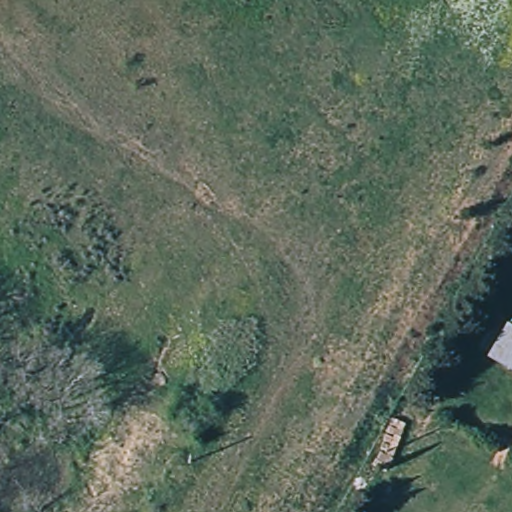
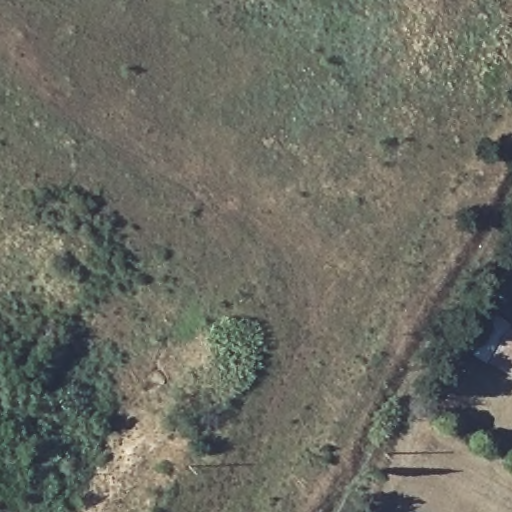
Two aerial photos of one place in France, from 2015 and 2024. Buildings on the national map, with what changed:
unchanged [(507,325),(512,328),(512,374),(488,359),(507,325)]

